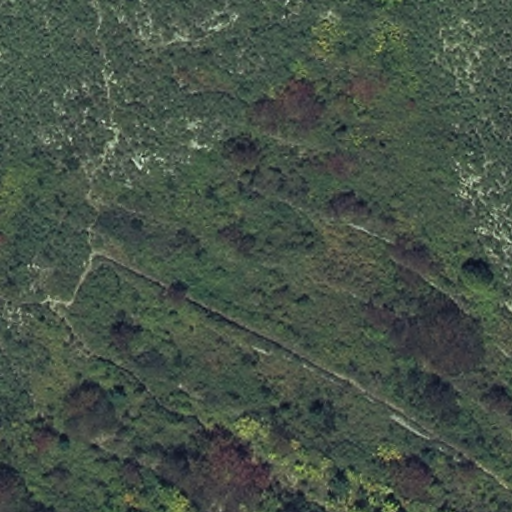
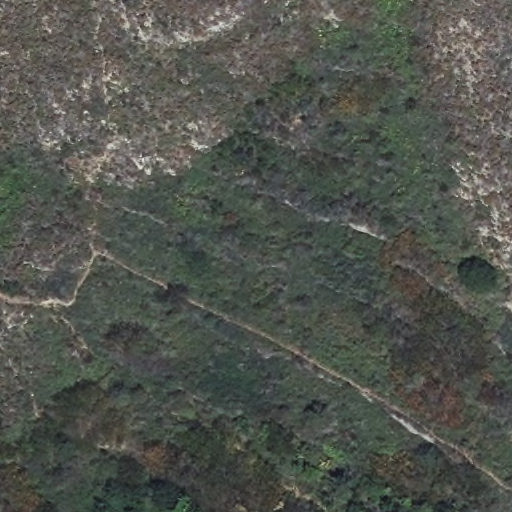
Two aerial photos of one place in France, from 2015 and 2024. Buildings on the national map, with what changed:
[]

